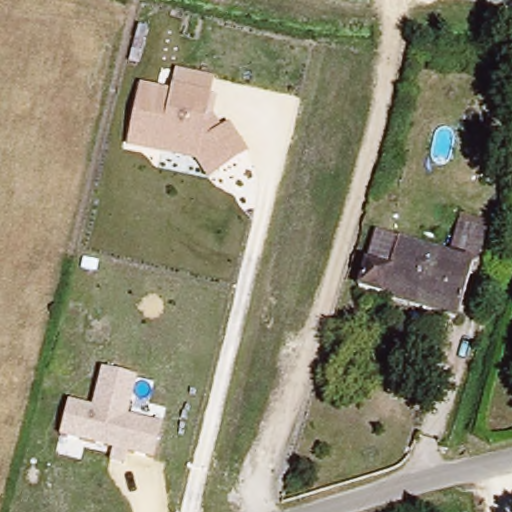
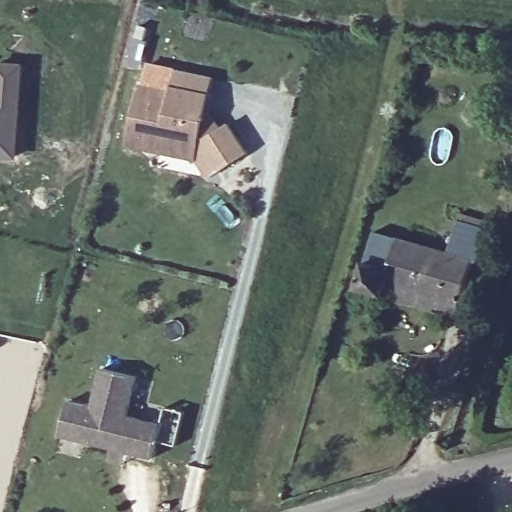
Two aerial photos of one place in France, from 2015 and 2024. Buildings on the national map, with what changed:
new [(25,62),(22,114),(16,162),(0,161),(0,62),(25,62)]
unchanged [(171,92),(175,70),(215,78),(212,94),(217,95),(212,117),(221,130),(230,124),(249,152),(207,180),(195,160),(127,147),(139,86),(171,92)]
unchanged [(358,262),(386,267),(393,241),(448,254),(457,212),(486,219),(465,308),(384,288),(382,296),(352,289),(358,262)]
unchanged [(137,375),(129,413),(162,422),(154,458),(129,452),(126,462),(110,458),(112,448),(59,435),(68,399),(93,405),(101,367),(137,375)]

